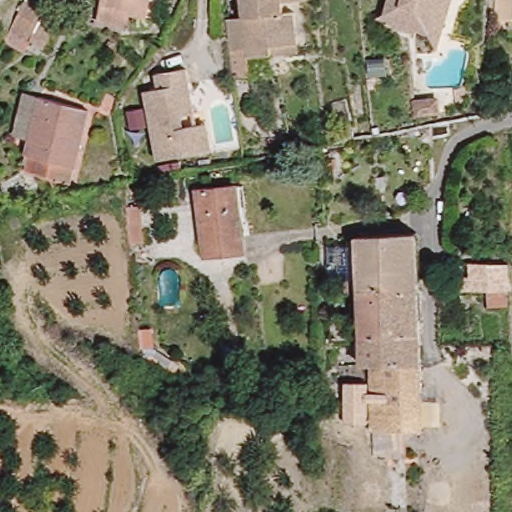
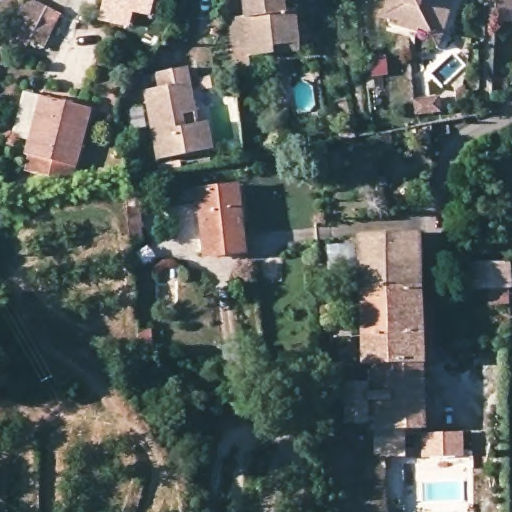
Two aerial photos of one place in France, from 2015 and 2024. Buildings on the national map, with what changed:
unchanged [(5,39),(26,0),(27,0),(57,16),(36,55),(5,39)]
unchanged [(131,11),(124,30),(94,20),(100,0),(154,0),(150,16),(131,11)]
unchanged [(245,56),(244,48),(227,50),(223,23),(222,16),(239,14),(237,0),(289,0),(289,8),(294,41),(296,49),(271,52),(245,56)]
unchanged [(375,18),(382,0),(451,0),(436,47),(375,18)]
unchanged [(496,22),(497,0),(512,0),(512,21),(496,22)]
unchanged [(207,150),(196,151),(151,156),(146,86),(161,84),(160,68),(189,65),(193,111),(178,113),(178,125),(194,123),(205,122),(207,150)]
unchanged [(26,174),(32,154),(37,137),(16,131),(29,90),(92,105),(75,165),(71,186),(26,174)]
unchanged [(237,189),(238,209),(238,213),(238,218),(238,223),(241,256),(203,258),(199,190),(237,189)]
unchanged [(115,193),(131,192),(131,211),(114,211),(115,193)]
unchanged [(361,285),(359,229),(418,226),(420,282),(361,285)]
unchanged [(467,285),(468,273),(507,274),(508,302),(451,301),(451,286),(467,285)]
unchanged [(364,330),(361,285),(420,282),(422,326),(364,330)]
unchanged [(373,359),(366,359),(364,330),(422,326),(423,356),(373,359)]
unchanged [(407,427),(408,448),(382,449),(376,421),(373,359),(423,356),(425,420),(417,421),(418,426),(407,427)]
new [(463,456),(422,457),(421,434),(462,434),(463,456)]
demolished [(431,448),(416,448),(415,436),(430,436),(431,448)]

